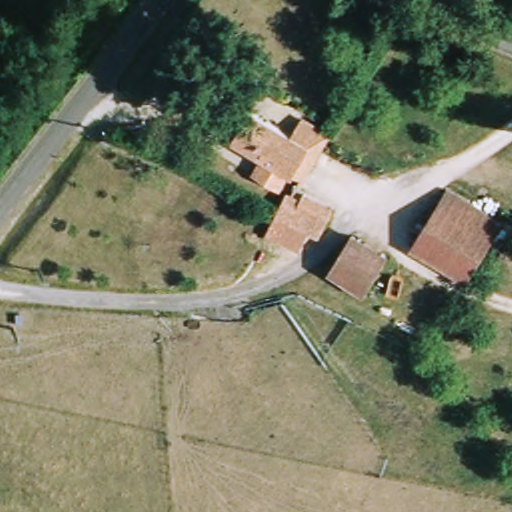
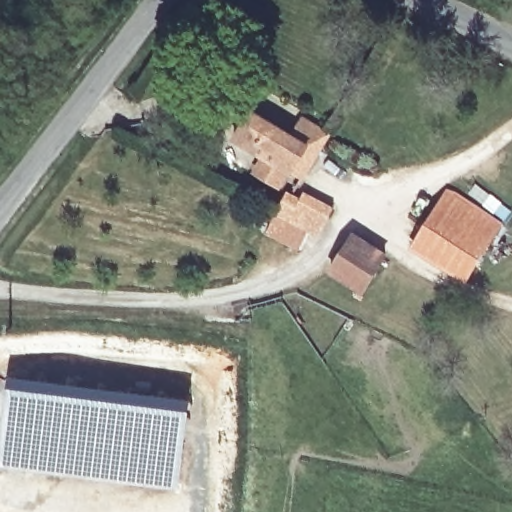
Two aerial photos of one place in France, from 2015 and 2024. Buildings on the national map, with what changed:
unchanged [(260,174),(268,162),(235,143),(252,115),(293,139),(302,125),(327,138),(314,165),(305,184),(290,175),(283,188),(260,174)]
unchanged [(412,247),(445,190),(505,223),(472,282),(412,247)]
unchanged [(289,197),(326,217),(318,234),(280,215),(289,197)]
unchanged [(362,289),(336,275),(353,243),(379,259),(362,289)]
new [(187,409),(175,489),(0,466),(0,427),(7,383),(187,409)]

